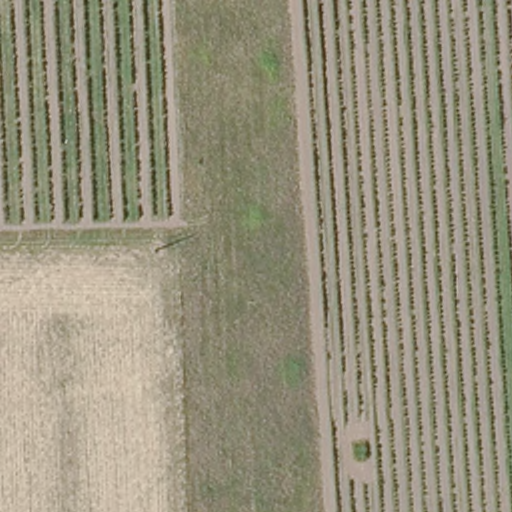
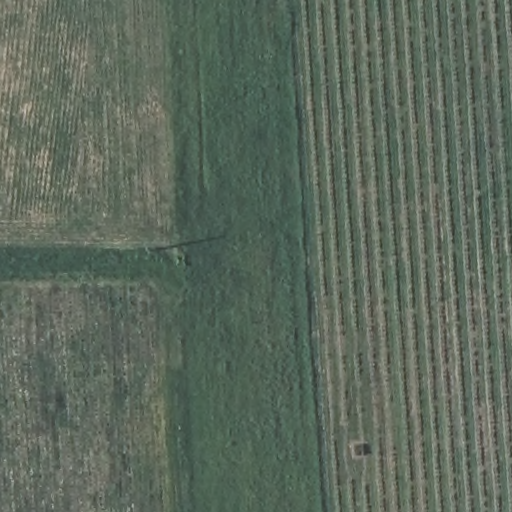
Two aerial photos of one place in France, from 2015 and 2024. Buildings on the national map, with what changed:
[]

